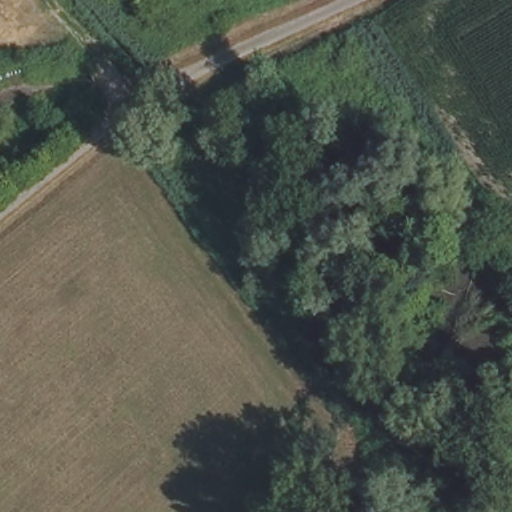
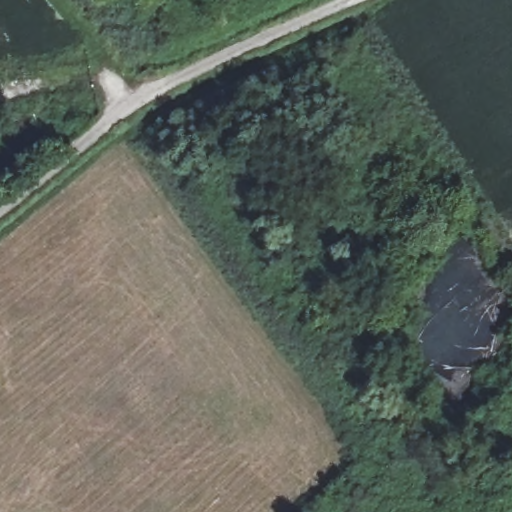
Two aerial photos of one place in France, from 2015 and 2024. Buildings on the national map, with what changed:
[]

